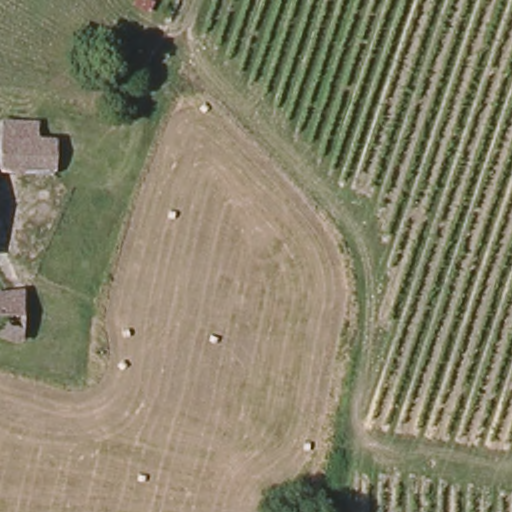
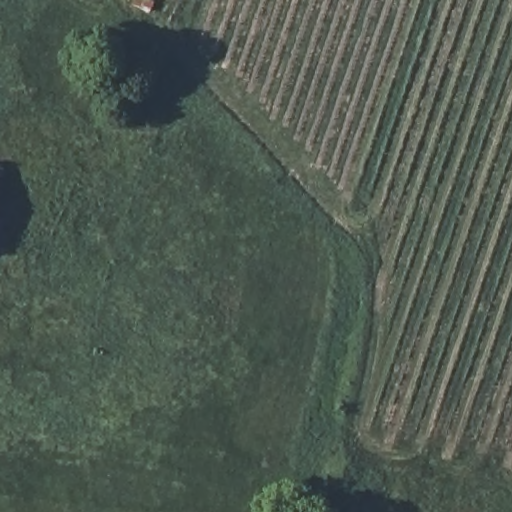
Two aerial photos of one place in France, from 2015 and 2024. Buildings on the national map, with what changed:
demolished [(56,176),(0,175),(0,119),(40,121),(42,140),(60,142),(56,176)]
demolished [(22,343),(0,341),(0,291),(25,291),(22,343)]

